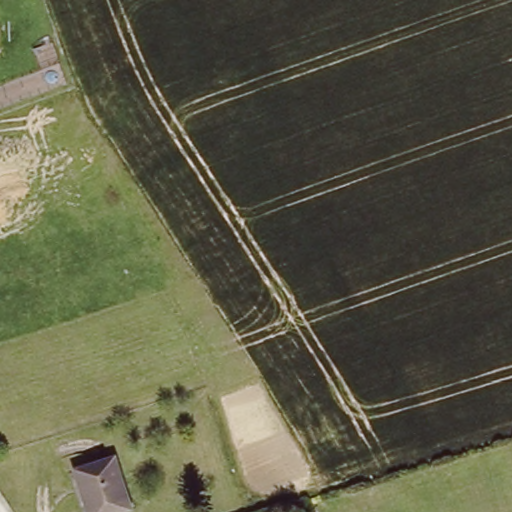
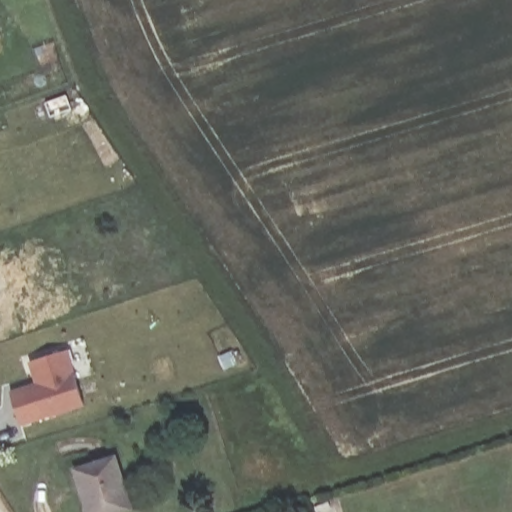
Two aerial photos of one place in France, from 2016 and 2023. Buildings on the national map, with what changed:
new [(37,384),(30,362),(67,350),(84,404),(20,425),(10,393),(37,384)]
unchanged [(130,512),(87,512),(75,472),(118,458),(135,510),(130,512)]

